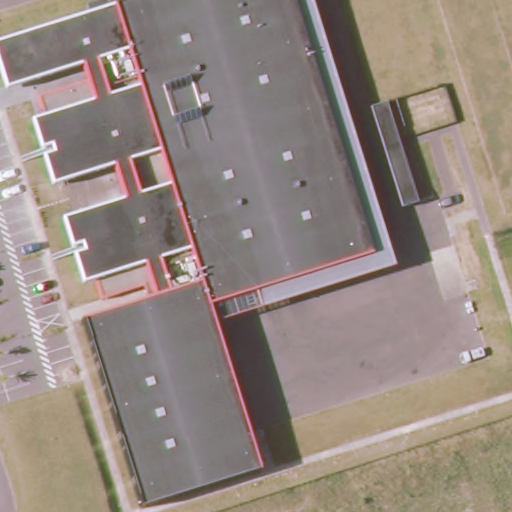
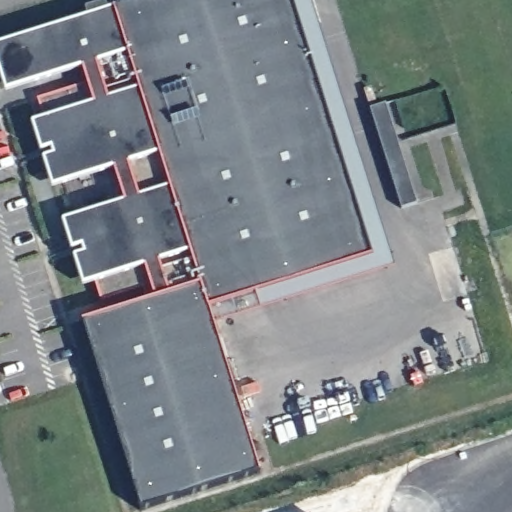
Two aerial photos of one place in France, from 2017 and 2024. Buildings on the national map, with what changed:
unchanged [(86,321),(105,315),(95,281),(82,285),(60,220),(122,200),(112,167),(53,185),(32,123),(45,119),(38,99),(86,85),(80,65),(7,89),(0,68),(0,47),(147,0),(309,0),(391,270),(215,324),(256,468),(140,503),(86,321)]
unchanged [(387,105),(417,204),(400,210),(371,110),(387,105)]

